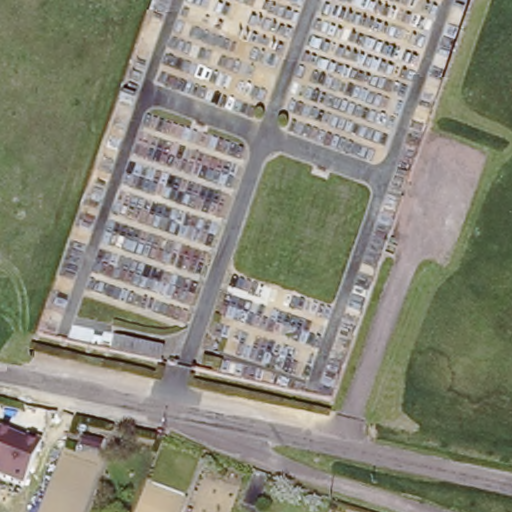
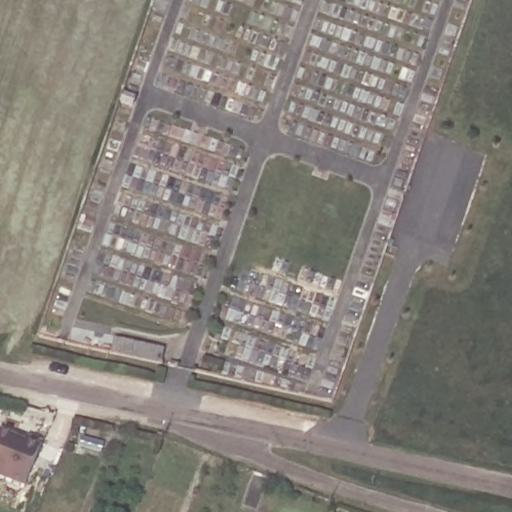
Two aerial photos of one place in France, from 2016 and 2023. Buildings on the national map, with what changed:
unchanged [(110,428),(106,440),(89,435),(93,423),(110,428)]
unchanged [(25,437),(27,432),(42,439),(24,486),(0,477),(0,429),(25,437)]

